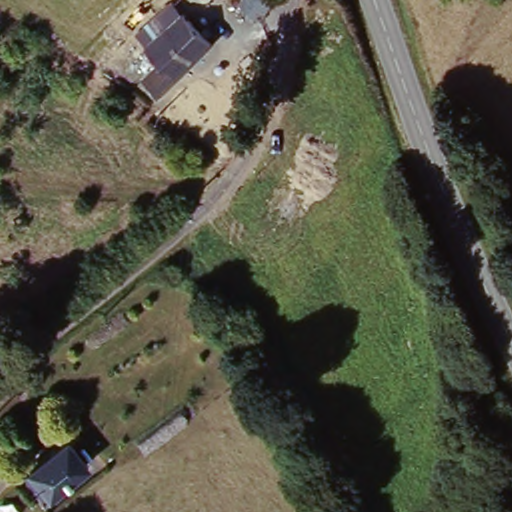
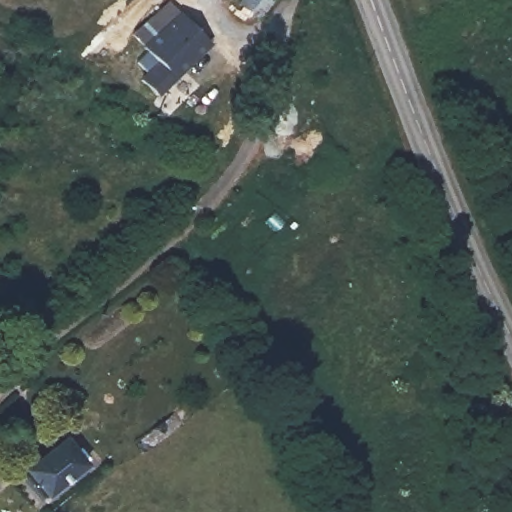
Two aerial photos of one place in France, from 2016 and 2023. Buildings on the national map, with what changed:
unchanged [(146,81),(160,67),(129,37),(167,0),(184,15),(214,45),(161,96),(146,81)]
unchanged [(243,7),(248,0),(277,0),(263,21),(243,7)]
unchanged [(27,306),(42,325),(31,333),(16,315),(27,306)]
unchanged [(69,431),(92,459),(46,498),(23,470),(69,431)]

